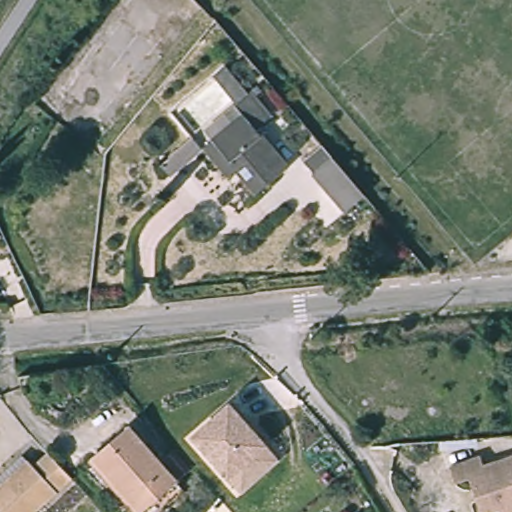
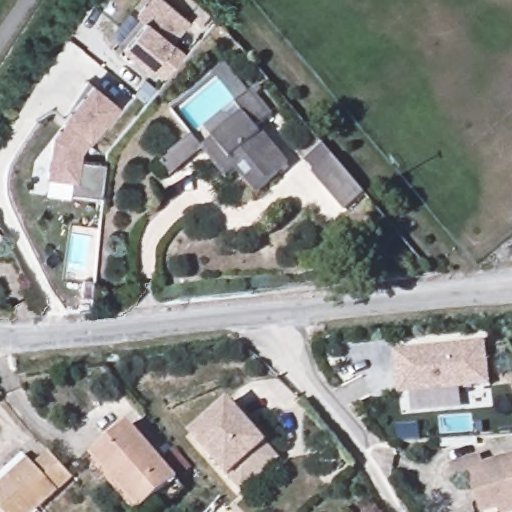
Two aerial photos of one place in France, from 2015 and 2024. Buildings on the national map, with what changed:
new [(172,43),(185,54),(165,79),(150,68),(148,70),(120,49),(137,26),(136,12),(146,0),(162,0),(189,22),(172,43)]
unchanged [(217,134),(225,126),(216,133),(209,123),(229,107),(237,116),(247,108),(240,99),(241,98),(218,70),(225,65),(225,64),(231,59),(254,87),(254,88),(257,85),(278,110),(261,123),(293,162),(262,188),(242,164),(233,172),(208,142),(217,134)]
new [(50,138),(63,121),(60,119),(90,84),(118,106),(90,141),(81,152),(80,162),(102,164),(98,196),(70,193),(70,180),(45,178),(50,138)]
unchanged [(172,156),(181,166),(171,174),(162,165),(172,156)]
unchanged [(346,211),(313,172),(333,156),(365,194),(346,211)]
unchanged [(5,239),(0,243),(0,235),(5,239)]
new [(487,343),(491,387),(398,396),(394,352),(487,343)]
unchanged [(230,402),(266,444),(228,477),(192,435),(230,402)]
unchanged [(160,512),(140,512),(92,457),(129,425),(177,481),(185,490),(160,512)]
new [(280,461),(242,494),(228,477),(266,444),(280,461)]
unchanged [(505,509),(495,512),(485,512),(475,479),(460,483),(455,466),(486,456),(490,465),(512,457),(512,512),(506,512),(505,509)]
unchanged [(49,457),(72,482),(40,512),(0,512),(0,491),(2,489),(0,487),(0,482),(23,460),(28,465),(34,470),(49,457)]

